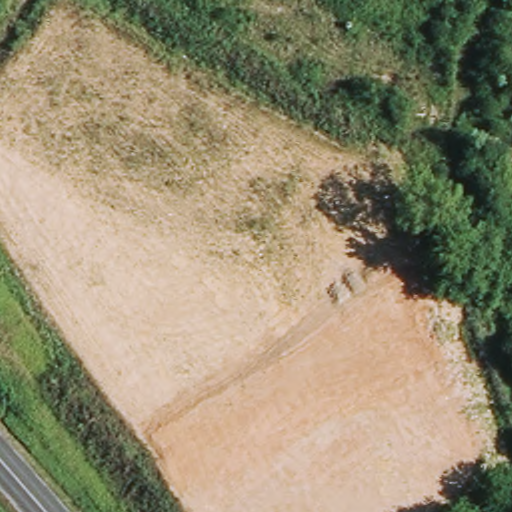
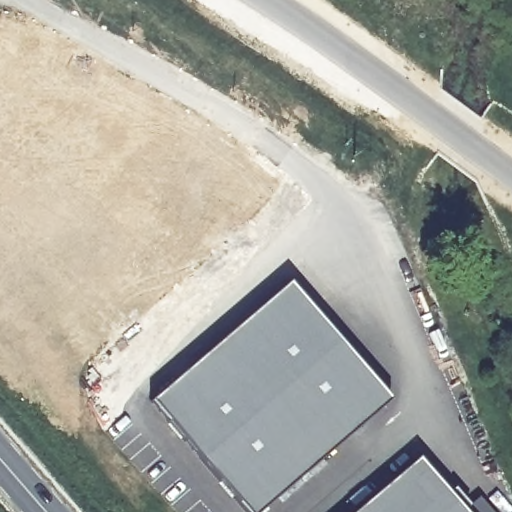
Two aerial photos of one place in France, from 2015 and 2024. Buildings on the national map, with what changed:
new [(390,402),(259,512),(249,512),(152,401),(288,284),(390,402)]
new [(463,512),(350,512),(415,456),(463,512)]

